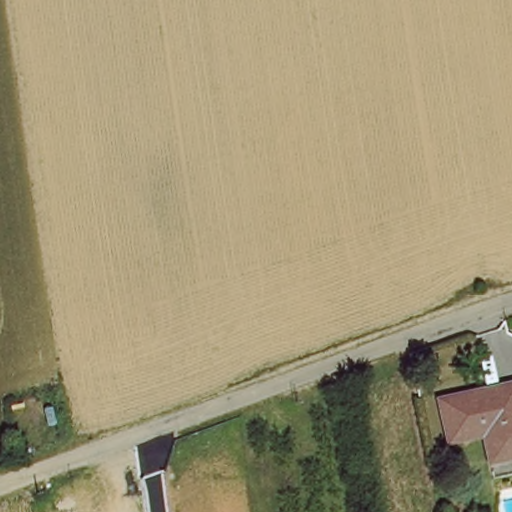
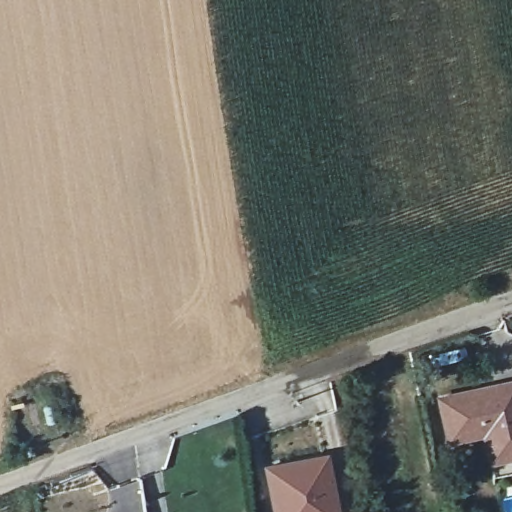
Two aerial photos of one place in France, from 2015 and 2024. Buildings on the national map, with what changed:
unchanged [(484,432),(449,440),(438,395),(498,384),(512,381),(512,473),(497,475),(484,432)]
new [(328,454),(340,512),(271,512),(262,466),(328,454)]

